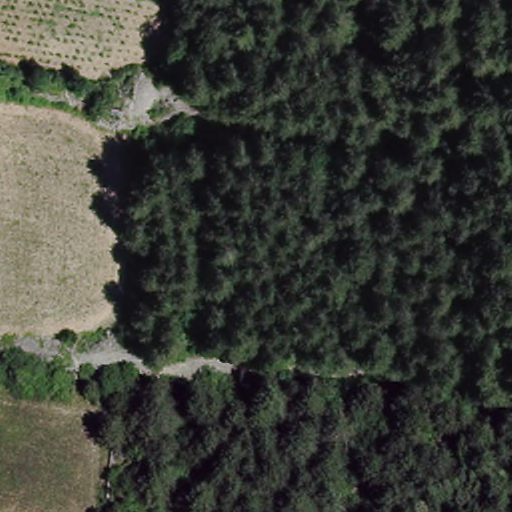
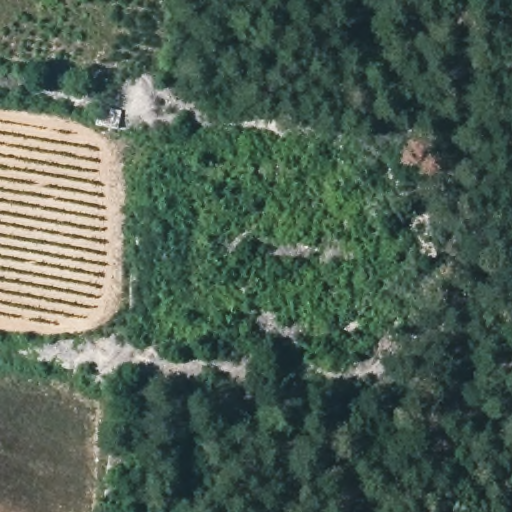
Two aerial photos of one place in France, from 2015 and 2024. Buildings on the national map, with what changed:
unchanged [(90,75),(118,78),(117,95),(89,91),(90,75)]

